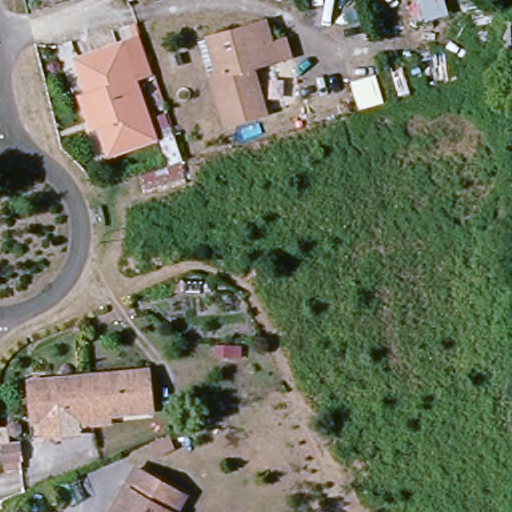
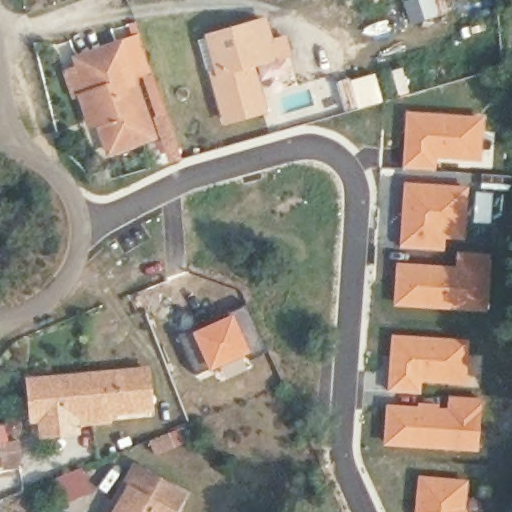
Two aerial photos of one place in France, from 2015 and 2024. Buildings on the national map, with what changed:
unchanged [(412,2),(411,0),(420,0),(412,2)]
unchanged [(274,61),(252,66),(264,108),(224,120),(210,72),(201,40),(214,35),(263,21),(274,61)]
unchanged [(88,120),(79,95),(86,93),(74,59),(119,43),(138,36),(140,42),(151,74),(132,80),(152,137),(107,153),(97,124),(90,126),(88,120)]
new [(406,112),(484,117),(481,161),(436,157),(435,171),(403,170),(404,163),(406,112)]
new [(444,251),(400,248),(405,183),(469,187),(466,241),(446,240),(444,251)]
new [(400,267),(461,271),(462,255),(492,257),(488,313),(394,306),(400,267)]
new [(195,373),(179,338),(249,306),(254,316),(249,318),(257,334),(261,332),(269,351),(248,360),(247,356),(209,372),(208,367),(195,373)]
new [(391,340),(470,340),(467,385),(419,382),(418,395),(388,392),(391,340)]
unchanged [(137,417),(103,420),(104,428),(87,430),(82,382),(142,376),(144,396),(146,416),(137,417)]
unchanged [(25,408),(23,388),(82,382),(87,430),(71,431),(70,424),(36,427),(27,428),(25,408)]
new [(383,446),(388,408),(451,415),(453,397),(482,400),(479,452),(383,446)]
unchanged [(128,471),(175,497),(166,512),(105,512),(118,490),(128,471)]
new [(468,481),(466,508),(467,512),(414,512),(419,475),(468,481)]

